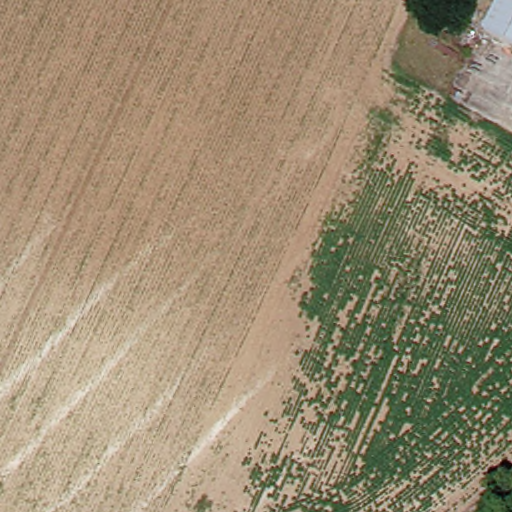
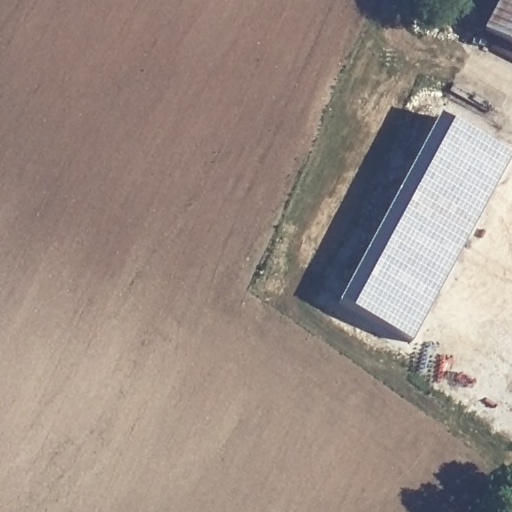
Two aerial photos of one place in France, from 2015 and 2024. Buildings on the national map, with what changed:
unchanged [(506,0),(512,0),(512,36),(494,27),(506,0)]
new [(362,308),(463,121),(512,148),(512,160),(414,339),(362,308)]

